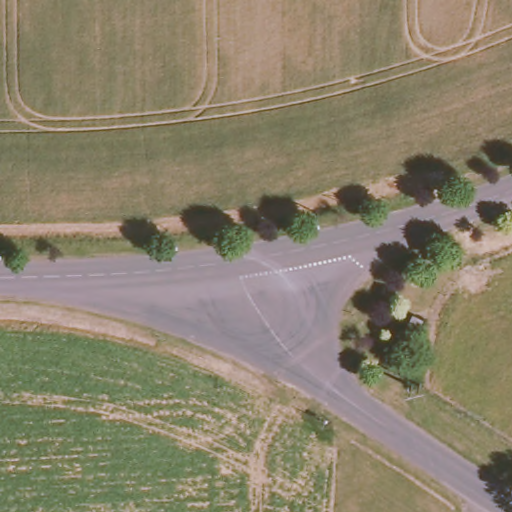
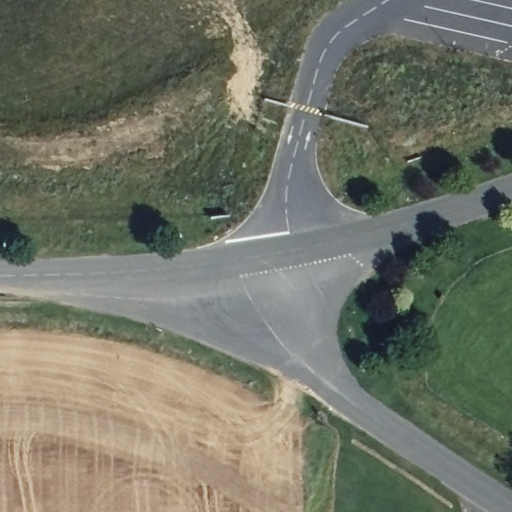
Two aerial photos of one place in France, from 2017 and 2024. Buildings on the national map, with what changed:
unchanged [(397,319),(413,307),(420,316),(404,327),(397,319)]

